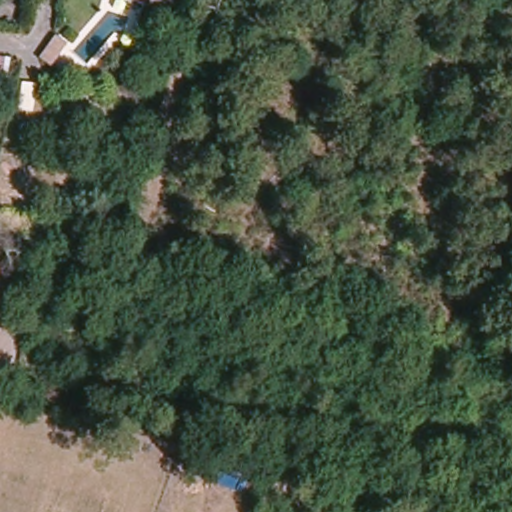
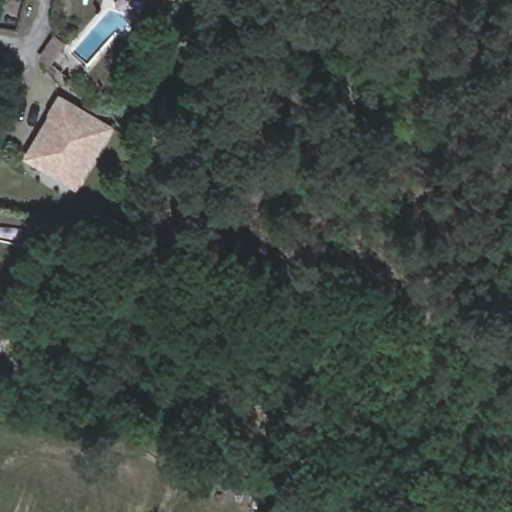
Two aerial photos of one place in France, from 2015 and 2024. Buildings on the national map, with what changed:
unchanged [(163,43),(139,36),(145,11),(172,18),(163,43)]
unchanged [(51,68),(35,56),(55,35),(69,45),(51,68)]
unchanged [(10,83),(0,83),(0,56),(11,57),(10,83)]
new [(77,190),(24,157),(61,93),(115,125),(77,190)]

